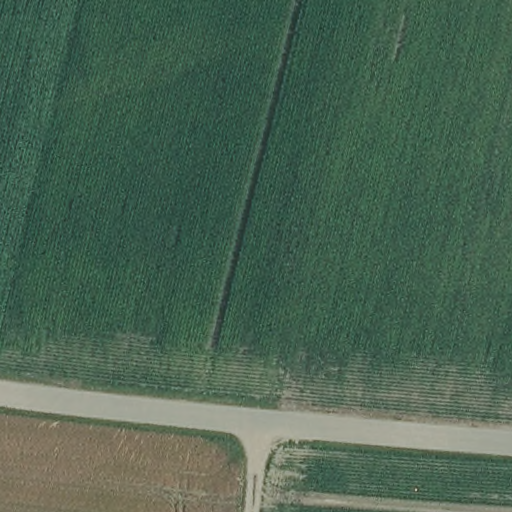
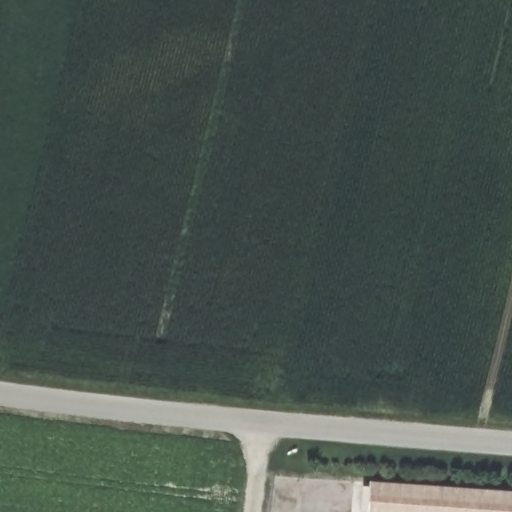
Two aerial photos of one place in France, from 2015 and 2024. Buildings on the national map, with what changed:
new [(512,479),(512,512),(355,512),(355,475),(512,479)]

